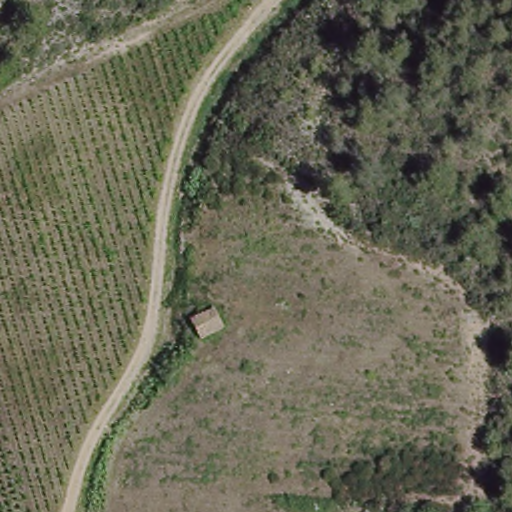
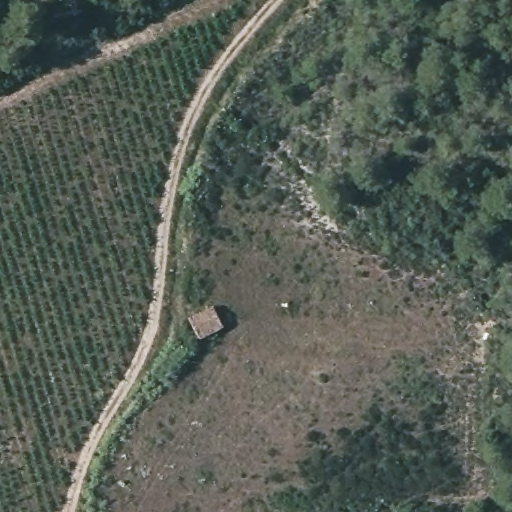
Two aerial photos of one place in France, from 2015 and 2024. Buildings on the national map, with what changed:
unchanged [(196,337),(187,320),(209,310),(217,327),(196,337)]

